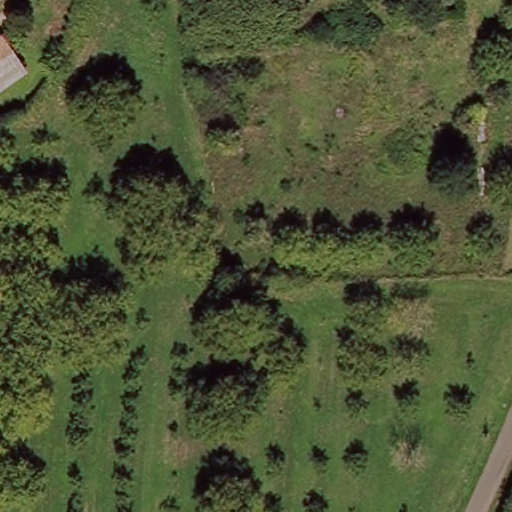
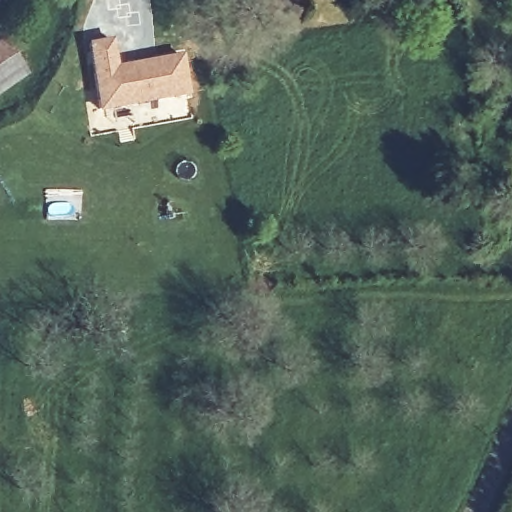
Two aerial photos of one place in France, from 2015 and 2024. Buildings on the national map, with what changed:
new [(88,43),(112,39),(117,66),(183,54),(191,93),(100,109),(88,43)]
unchanged [(21,70),(0,86),(0,42),(21,70)]

